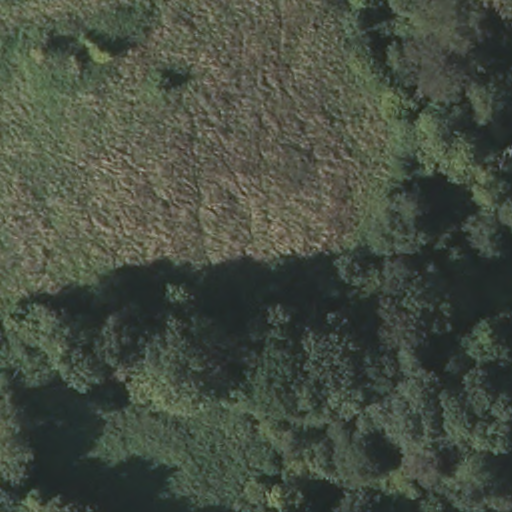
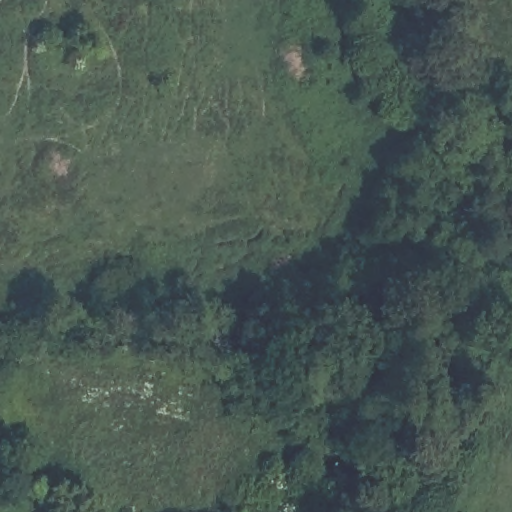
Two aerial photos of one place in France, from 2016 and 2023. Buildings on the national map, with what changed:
unchanged [(107,36),(104,56),(51,49),(54,30),(107,36)]

